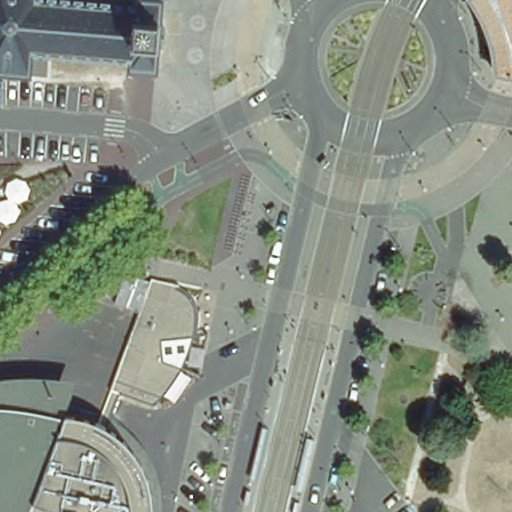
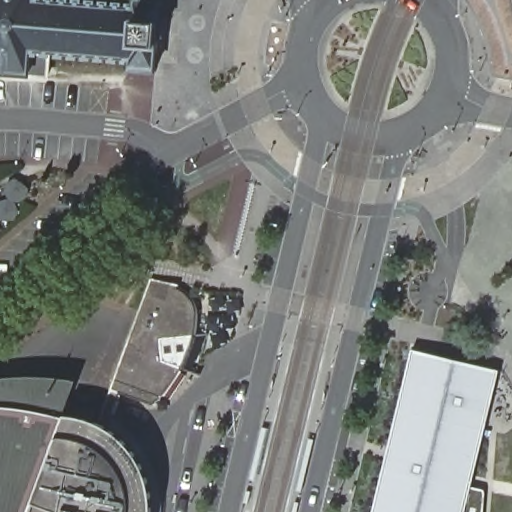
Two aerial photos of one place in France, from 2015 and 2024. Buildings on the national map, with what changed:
unchanged [(35,2),(134,7),(135,0),(160,0),(156,69),(131,69),(133,55),(51,52),(50,78),(0,75),(0,0),(36,0),(35,2)]
unchanged [(490,72),(490,70),(490,69),(490,67),(490,65),(490,63),(490,62),(490,60),(490,58),(490,56),(490,55),(490,52),(490,51),(489,49),(489,47),(489,46),(488,44),(488,42),(488,40),(487,38),(487,36),(486,34),(486,32),(485,31),(484,29),(484,27),(483,25),(482,24),(482,22),(481,20),(480,19),(479,17),(478,16),(477,14),(476,12),(475,11),(475,10),(474,9),(473,7),(472,6),(471,5),(470,3),(469,2),(468,1),(468,0),(512,0),(512,78),(490,74),(490,72)]
unchanged [(113,387),(153,277),(178,282),(193,297),(198,318),(195,336),(161,338),(164,362),(180,368),(173,381),(156,404),(113,387)]
new [(498,370),(464,512),(376,512),(414,351),(498,370)]
unchanged [(0,512),(0,406),(12,407),(36,410),(57,416),(23,512),(0,512)]
unchanged [(66,416),(92,421),(119,435),(140,458),(151,484),(154,507),(153,512),(23,512),(57,416),(66,416)]
new [(484,492),(483,512),(464,512),(470,487),(483,491),(484,492)]

